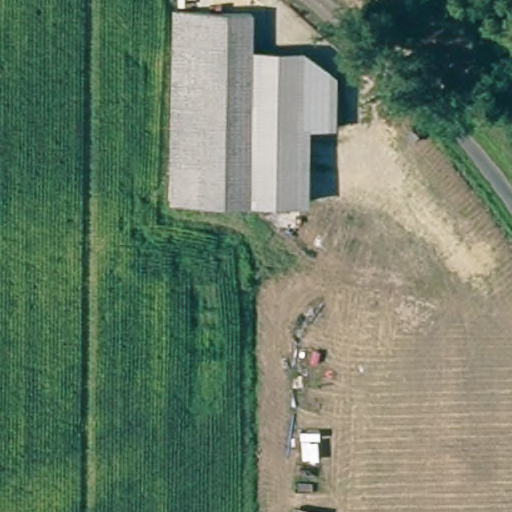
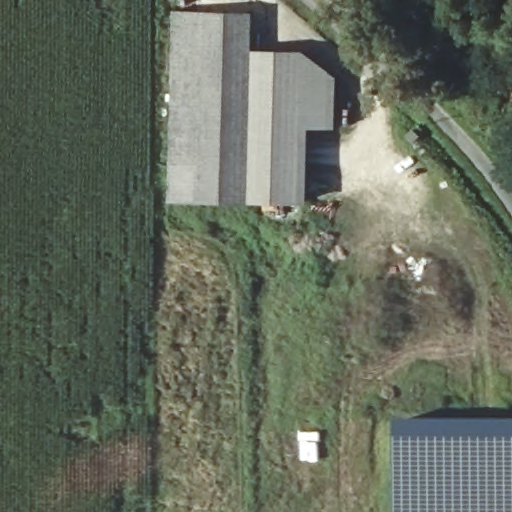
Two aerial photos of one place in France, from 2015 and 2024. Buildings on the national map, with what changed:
unchanged [(244,52),(245,201),(191,201),(192,150),(170,150),(173,14),(216,15),(244,16),(244,44),(244,52)]
unchanged [(244,52),(302,52),(298,202),(245,201),(244,52)]
unchanged [(302,52),(337,76),(336,129),(309,128),(307,204),(298,202),(302,52)]
new [(390,512),(390,422),(512,421),(512,512),(390,512)]

